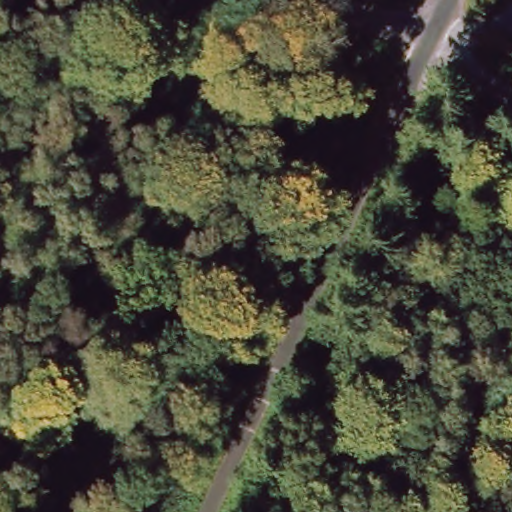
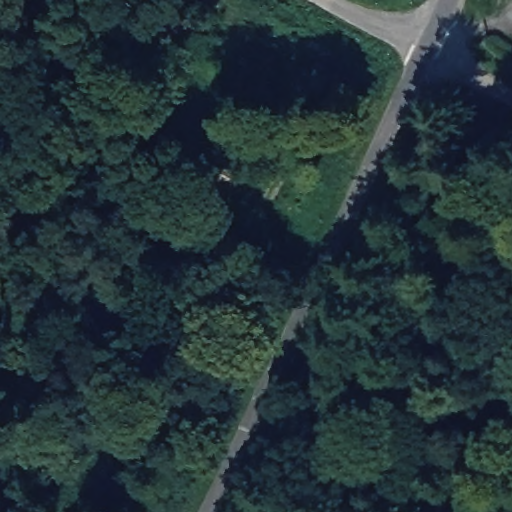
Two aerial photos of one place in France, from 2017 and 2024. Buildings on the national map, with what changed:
unchanged [(502,43),(512,26),(512,49),(502,43)]

